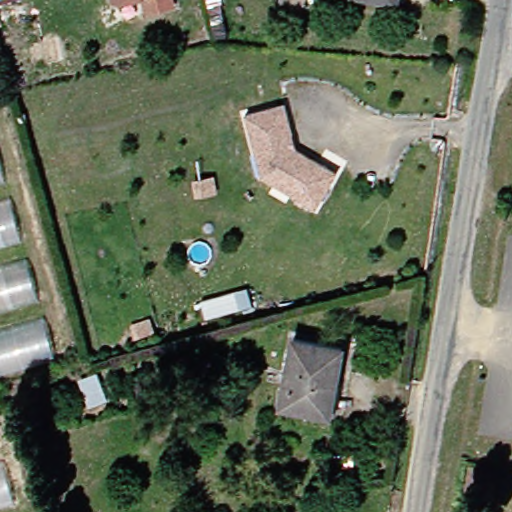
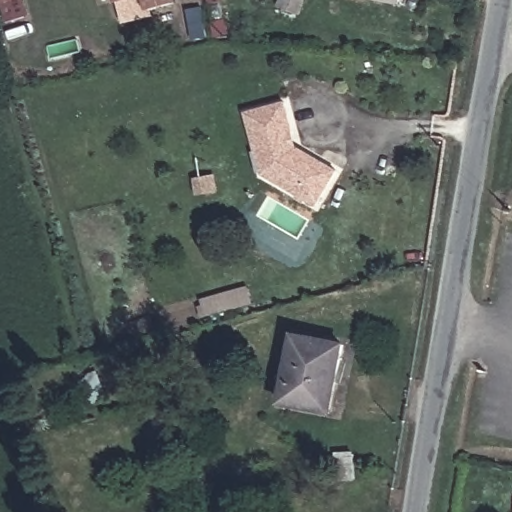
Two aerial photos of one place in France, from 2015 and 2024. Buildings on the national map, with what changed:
unchanged [(105,0),(124,0),(106,4),(105,0)]
unchanged [(159,0),(160,4),(136,10),(134,0),(159,0)]
unchanged [(283,7),(285,0),(308,0),(302,15),(283,7)]
unchanged [(247,153),(237,118),(275,107),(290,149),(328,171),(308,205),(260,177),(253,172),(247,153)]
demolished [(6,200),(16,234),(0,238),(0,202),(6,200)]
demolished [(21,261),(32,304),(0,313),(0,267),(21,261)]
demolished [(37,320),(47,357),(0,371),(0,331),(37,320)]
unchanged [(290,341),(338,350),(326,413),(278,405),(290,341)]
demolished [(9,500),(0,503),(0,470),(9,500)]

